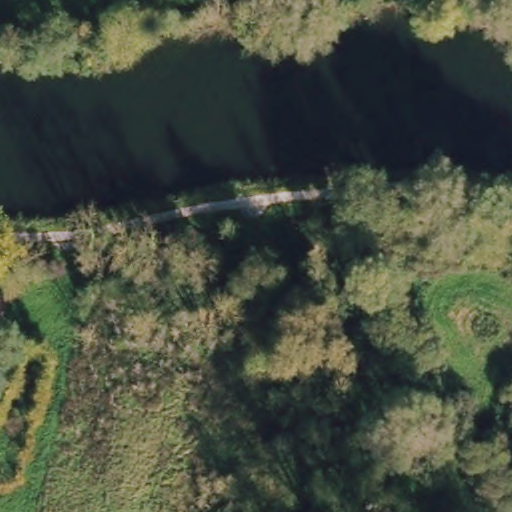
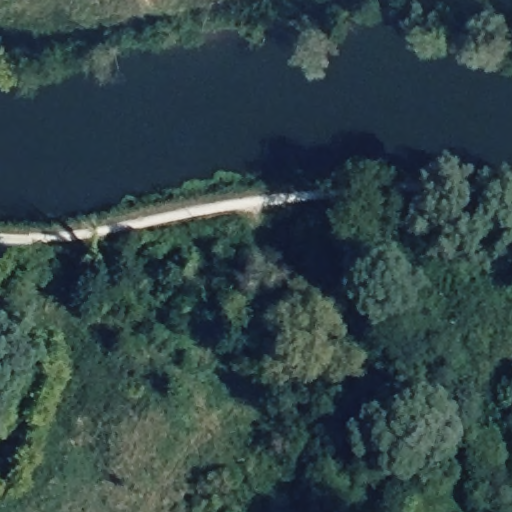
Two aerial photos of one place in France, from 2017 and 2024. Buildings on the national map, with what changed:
unchanged [(0,326),(0,298),(4,298),(3,326),(0,326)]

